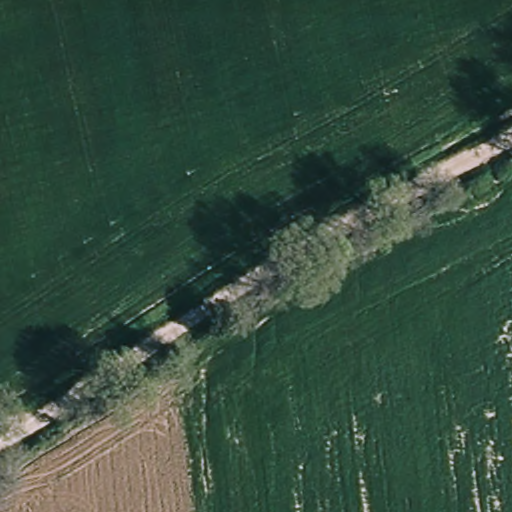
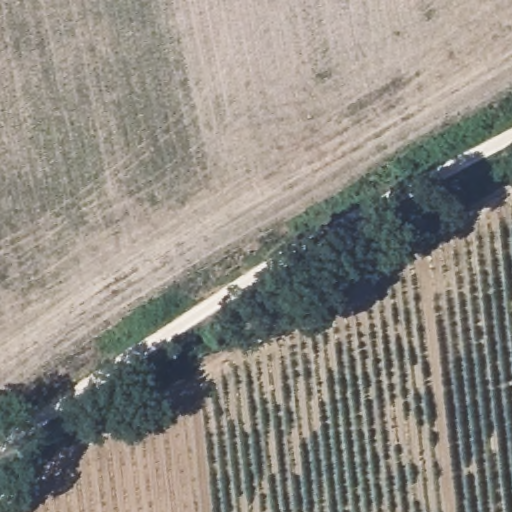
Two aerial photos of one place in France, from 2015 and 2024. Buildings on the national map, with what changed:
[]

